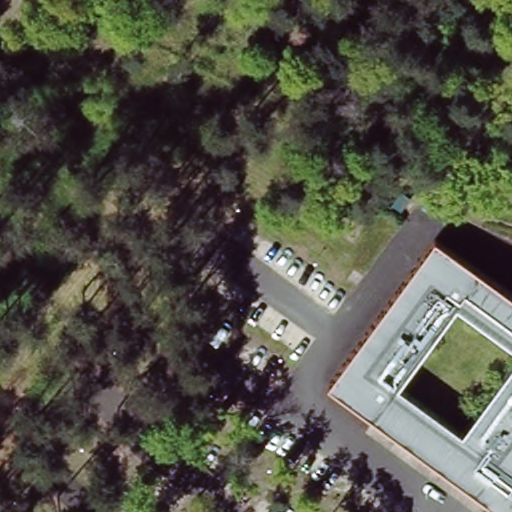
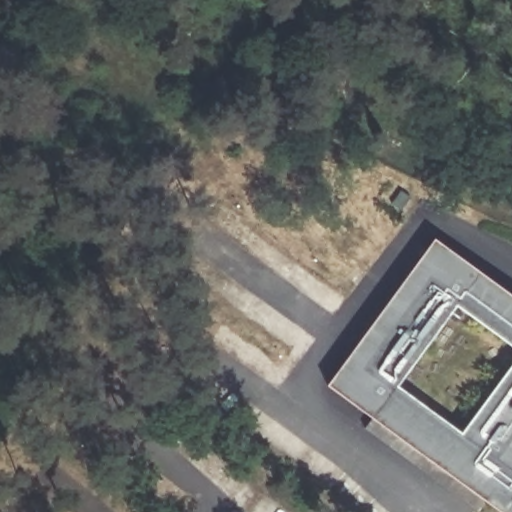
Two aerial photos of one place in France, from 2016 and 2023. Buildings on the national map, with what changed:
unchanged [(512,293),(512,344),(456,303),(396,383),(462,430),(512,361),(512,512),(503,512),(486,499),(479,510),(365,427),(371,414),(327,383),(435,237),(512,293)]

